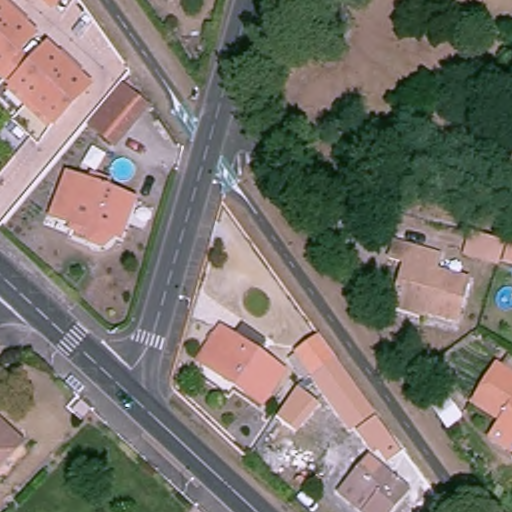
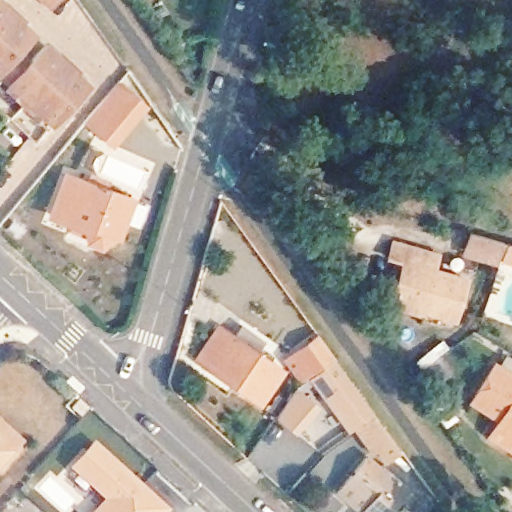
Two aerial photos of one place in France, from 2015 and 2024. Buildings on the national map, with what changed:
unchanged [(19,49),(30,59),(46,42),(90,81),(54,120),(0,70),(0,0),(1,0),(35,31),(19,49)]
unchanged [(46,0),(57,0),(51,5),(46,0)]
unchanged [(142,101),(109,141),(89,121),(121,83),(142,101)]
unchanged [(99,168),(105,171),(105,177),(123,184),(131,189),(124,210),(118,226),(112,224),(112,226),(109,231),(106,234),(100,236),(95,237),(90,235),(84,232),(81,225),(80,220),(83,214),(54,204),(69,164),(94,173),(99,168)]
unchanged [(502,262),(500,270),(460,261),(470,234),(512,244),(512,263),(502,262)]
unchanged [(447,273),(476,283),(463,325),(402,304),(407,289),(396,285),(402,265),(399,264),(405,246),(450,261),(447,273)]
unchanged [(235,320),(265,344),(255,354),(279,371),(253,404),(204,366),(210,358),(196,347),(214,324),(226,334),(235,320)]
unchanged [(361,423),(353,412),(348,415),(315,367),(318,365),(303,343),(325,327),(341,349),(337,352),(380,410),(361,423)]
unchanged [(485,435),(495,420),(500,414),(473,396),(495,364),(512,376),(512,453),(485,435)]
new [(293,384),(315,403),(292,428),(275,412),(293,384)]
unchanged [(76,415),(65,404),(75,394),(86,404),(76,415)]
unchanged [(0,463),(0,427),(18,444),(0,463)]
unchanged [(402,452),(389,461),(373,440),(387,431),(402,452)]
new [(94,439),(170,508),(166,512),(89,512),(101,499),(68,467),(94,439)]
unchanged [(413,492),(395,512),(364,512),(340,490),(370,456),(413,492)]

